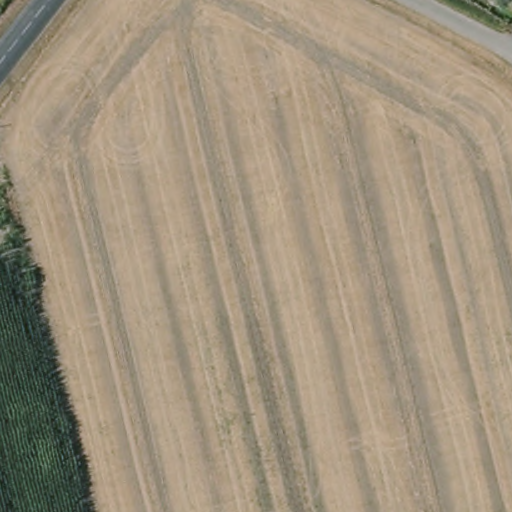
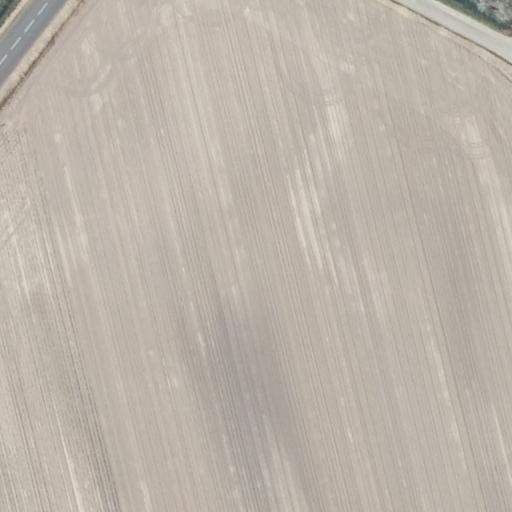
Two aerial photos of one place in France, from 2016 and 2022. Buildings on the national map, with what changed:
[]

